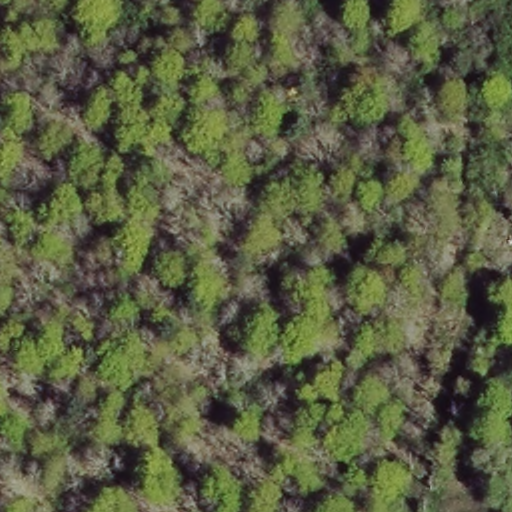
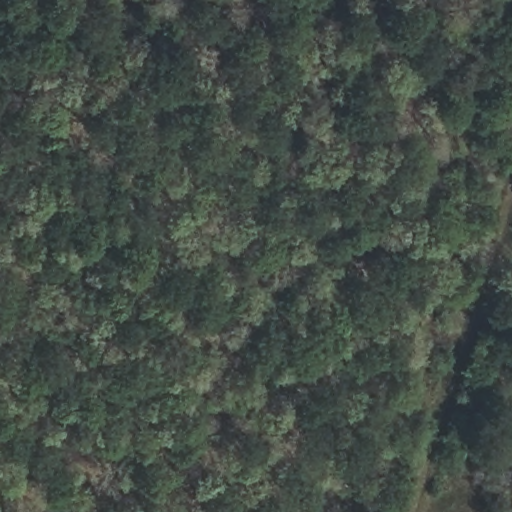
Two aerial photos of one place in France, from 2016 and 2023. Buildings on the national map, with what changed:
[]

